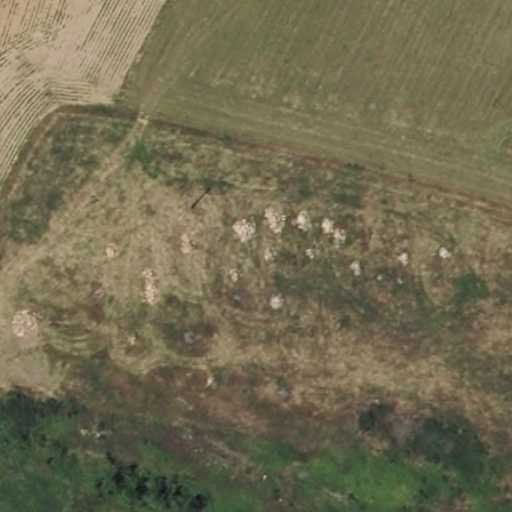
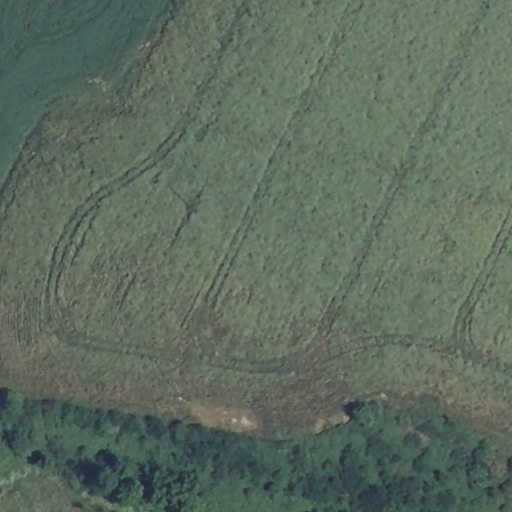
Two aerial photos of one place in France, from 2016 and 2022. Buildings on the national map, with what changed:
[]

